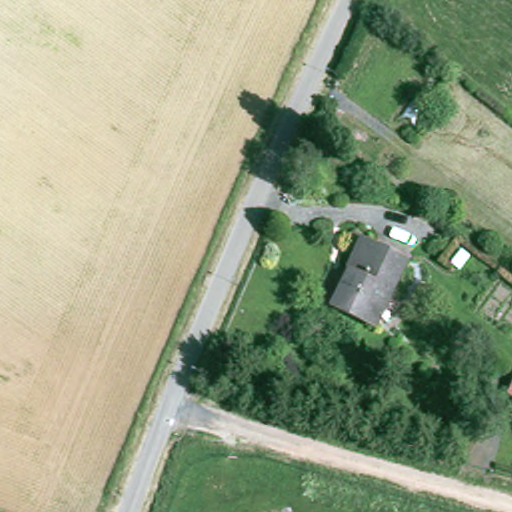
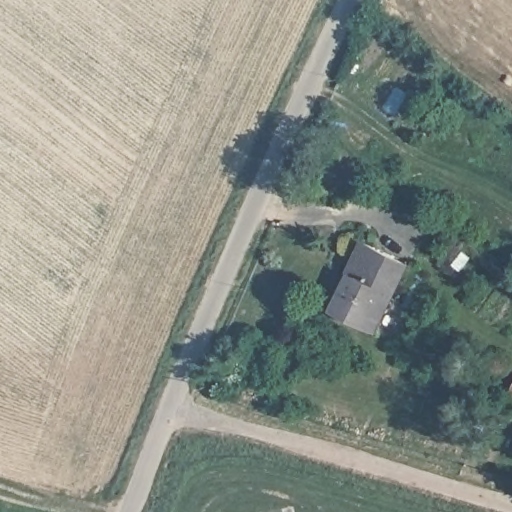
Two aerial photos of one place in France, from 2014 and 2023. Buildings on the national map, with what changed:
unchanged [(382,328),(341,308),(356,277),(353,276),(369,243),(412,264),(382,328)]

